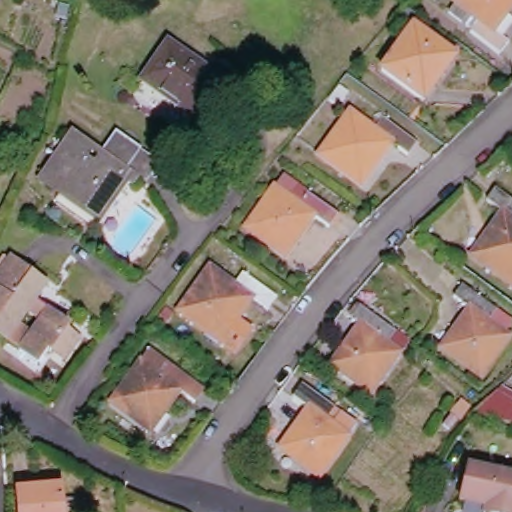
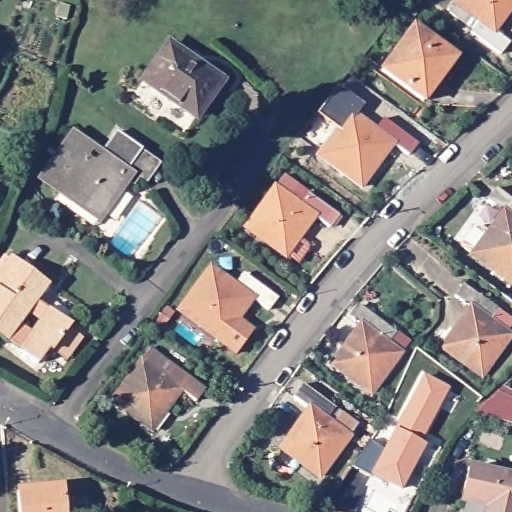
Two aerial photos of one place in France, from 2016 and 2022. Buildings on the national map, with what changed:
unchanged [(501,55),(471,33),(473,31),(450,13),(457,4),(455,3),(457,0),(512,0),(512,7),(495,31),(510,43),(501,55)]
unchanged [(425,101),(383,70),(414,28),(456,59),(425,101)]
unchanged [(196,118),(144,80),(169,45),(221,83),(196,118)]
unchanged [(340,108),(330,101),(340,88),(350,95),(340,108)]
unchanged [(362,186),(320,156),(351,113),(375,131),(384,119),(417,144),(409,156),(393,144),(362,186)]
unchanged [(127,181),(104,214),(74,193),(77,188),(70,183),(65,191),(45,177),(59,158),(55,156),(70,136),(92,151),(87,157),(96,163),(117,133),(142,151),(161,165),(147,184),(140,179),(134,187),(127,181)]
unchanged [(291,256),(252,228),(280,189),(305,207),(314,195),(344,216),(335,229),(319,217),(291,256)]
unchanged [(472,255),(504,213),(487,201),(497,189),(512,201),(512,283),(472,255)]
unchanged [(57,351),(55,349),(44,363),(0,331),(0,291),(2,289),(0,287),(0,280),(17,258),(39,274),(38,275),(54,286),(42,302),(75,327),(74,328),(87,338),(70,361),(57,351)]
unchanged [(222,341),(180,311),(211,269),(235,286),(244,274),(277,299),(269,311),(253,299),(222,341)]
unchanged [(487,376),(447,348),(475,308),(460,297),(469,285),(502,309),(512,316),(512,326),(508,332),(512,335),(512,340),(487,376)]
unchanged [(360,325),(352,319),(360,307),(407,342),(399,354),(400,354),(372,393),(332,364),(360,325)]
unchanged [(152,430),(113,401),(150,350),(175,368),(205,390),(196,402),(180,391),(152,430)]
new [(449,393),(420,444),(425,447),(400,491),(372,475),(426,380),(449,393)]
unchanged [(325,477),(285,449),(314,409),(299,398),(307,386),(362,425),(353,437),(325,477)]
unchanged [(500,393),(512,400),(512,423),(479,414),(500,393)]
unchanged [(469,468),(512,477),(512,512),(485,512),(487,508),(462,502),(469,468)]
unchanged [(63,512),(20,512),(18,492),(61,488),(63,512)]

